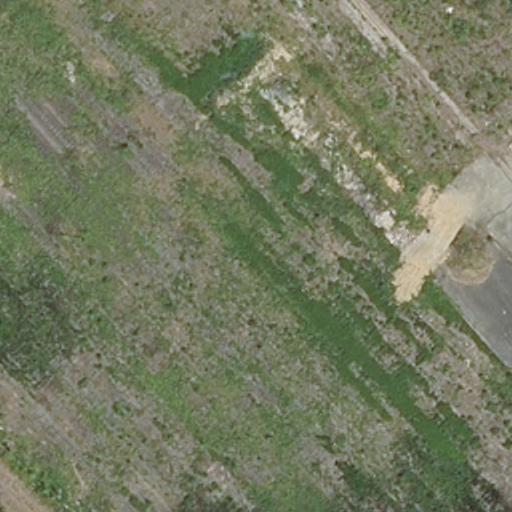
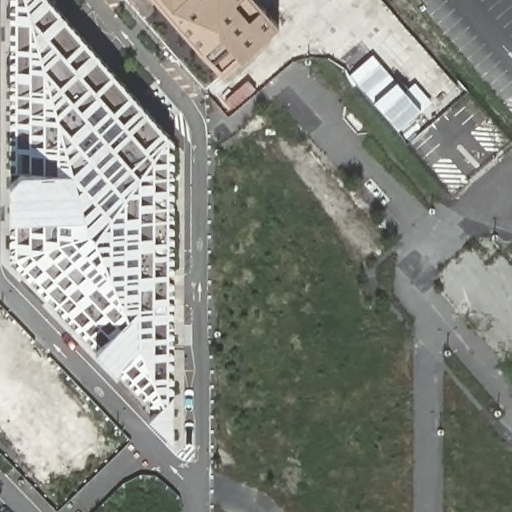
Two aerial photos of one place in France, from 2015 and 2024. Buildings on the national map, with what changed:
new [(149,418),(156,410),(118,372),(95,348),(10,257),(10,214),(10,180),(11,0),(50,0),(168,135),(175,143),(174,441),(149,418)]
new [(222,74),(205,53),(159,0),(256,0),(279,26),(240,58),(222,74)]
new [(248,80),(255,89),(234,109),(225,99),(248,80)]

